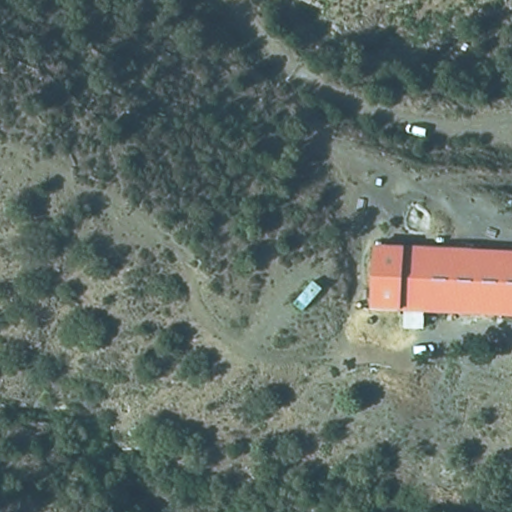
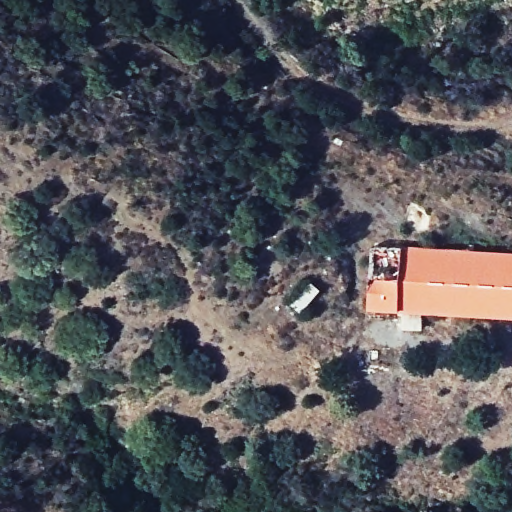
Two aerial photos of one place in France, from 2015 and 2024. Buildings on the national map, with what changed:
unchanged [(378,242),(512,251),(512,319),(370,311),(378,242)]

